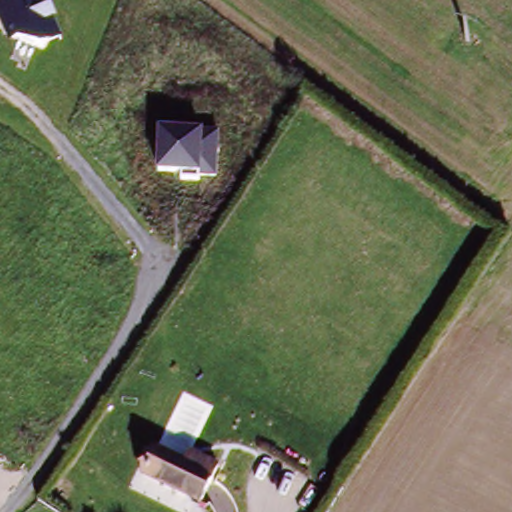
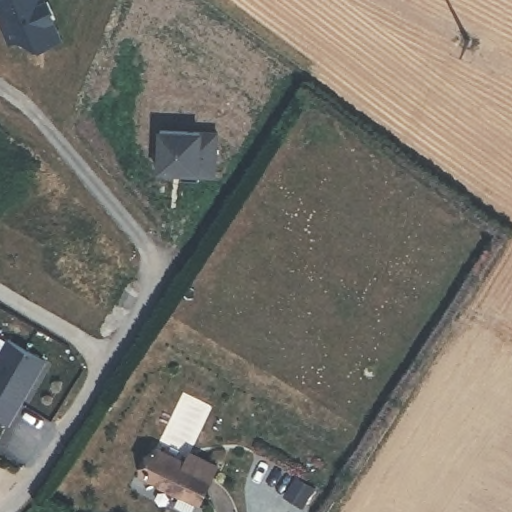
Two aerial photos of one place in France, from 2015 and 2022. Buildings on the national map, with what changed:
unchanged [(40,57),(7,35),(0,16),(0,0),(50,0),(66,45),(40,57)]
unchanged [(219,131),(217,177),(157,175),(156,128),(219,131)]
new [(47,364),(12,427),(0,421),(0,360),(10,342),(47,364)]
unchanged [(196,500),(141,473),(153,446),(182,460),(185,455),(192,459),(194,453),(214,463),(196,500)]

